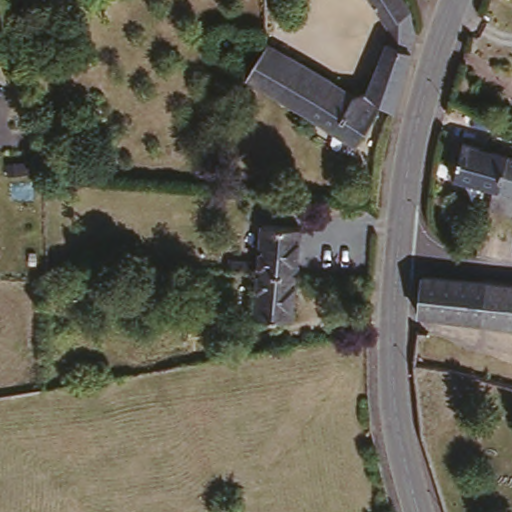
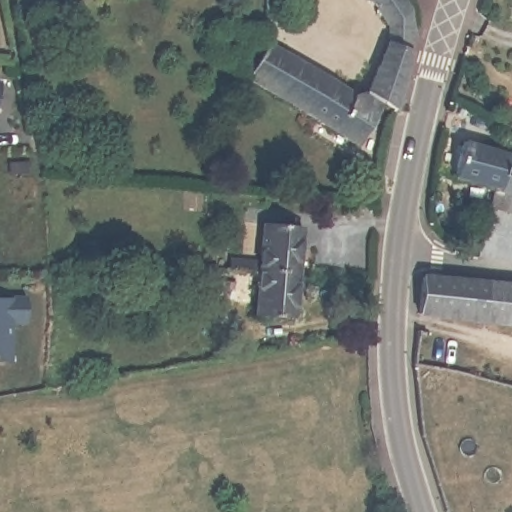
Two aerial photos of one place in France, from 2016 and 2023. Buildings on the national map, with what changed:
unchanged [(369,83),(388,33),(389,20),(376,0),(408,0),(414,31),(395,102),(381,92),(353,136),(246,72),(267,35),(354,86),(369,83)]
unchanged [(505,209),(491,205),(476,201),(480,182),(440,172),(449,135),(495,150),(511,153),(512,154),(512,220),(503,217),(505,209)]
unchanged [(301,221),(297,266),(256,264),(260,217),(301,221)]
unchanged [(292,313),(252,308),(256,264),(297,266),(292,313)]
unchanged [(413,311),(416,278),(423,275),(492,281),(512,283),(512,323),(495,320),(413,311)]
unchanged [(188,292),(190,278),(228,282),(226,295),(188,292)]
new [(0,362),(0,296),(25,296),(25,325),(12,325),(12,362),(0,362)]

